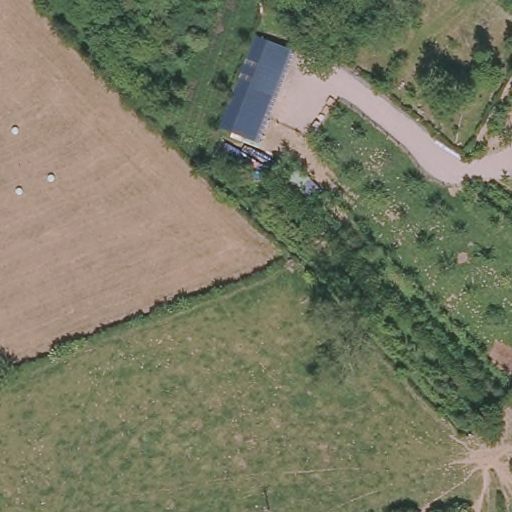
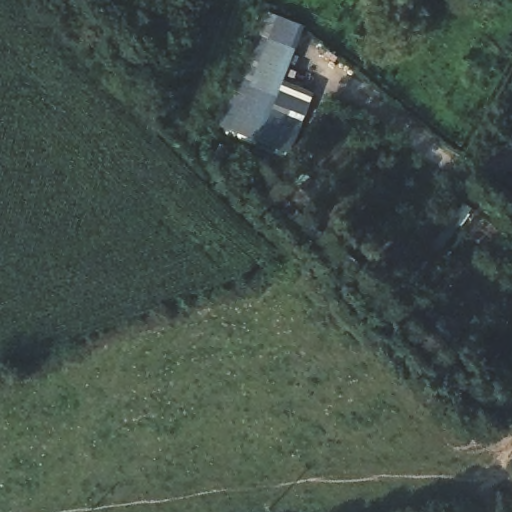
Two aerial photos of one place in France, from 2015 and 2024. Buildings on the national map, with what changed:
unchanged [(261,145),(232,130),(268,39),(296,49),(261,145)]

